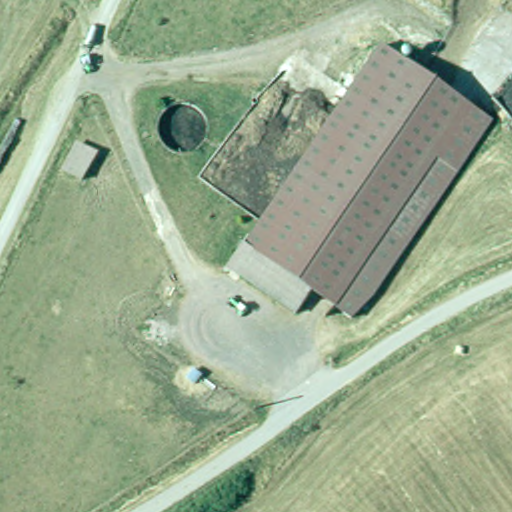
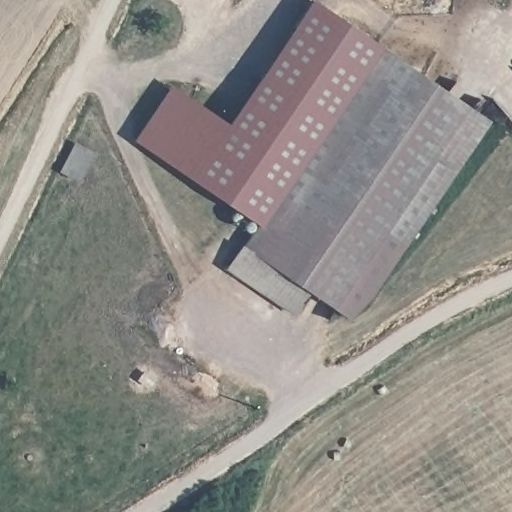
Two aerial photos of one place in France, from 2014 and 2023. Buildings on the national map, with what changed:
new [(261,226),(135,140),(172,85),(228,123),(313,0),(315,0),(383,46),(380,51),(261,226)]
unchanged [(245,250),(380,51),(471,112),(385,237),(335,310),(312,295),(245,250)]
new [(490,124),(405,250),(385,237),(471,112),(490,124)]
unchanged [(58,180),(71,146),(99,154),(85,187),(58,180)]
unchanged [(405,250),(373,302),(352,320),(335,310),(385,237),(405,250)]
unchanged [(297,317),(230,272),(245,250),(312,295),(297,317)]

